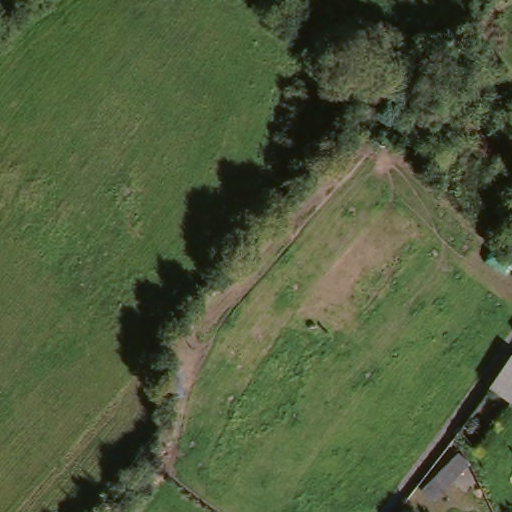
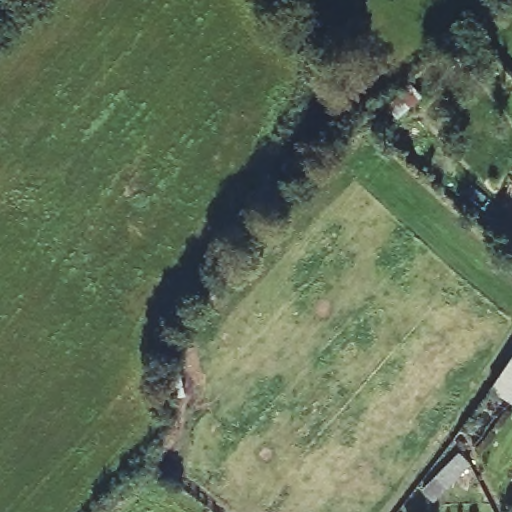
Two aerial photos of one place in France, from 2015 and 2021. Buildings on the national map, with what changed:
unchanged [(512,365),(512,401),(495,386),(512,365)]
unchanged [(472,468),(437,501),(425,488),(460,454),(472,468)]

